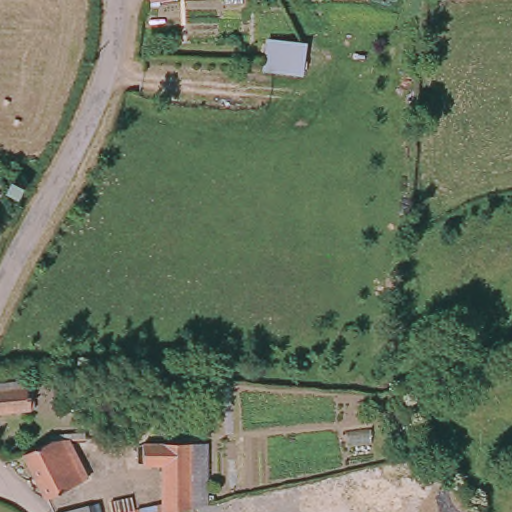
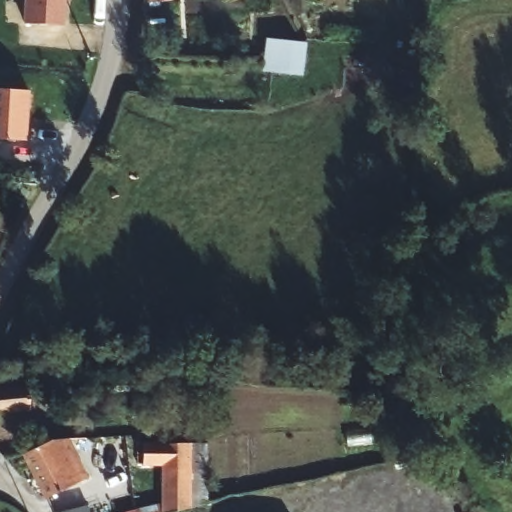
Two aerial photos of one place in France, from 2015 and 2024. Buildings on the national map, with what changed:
new [(24,23),(25,0),(69,0),(65,25),(24,23)]
new [(260,67),(268,35),(309,46),(300,78),(260,67)]
new [(27,139),(0,139),(0,88),(30,90),(27,139)]
unchanged [(0,387),(25,386),(29,416),(0,419),(0,387)]
unchanged [(48,439),(64,438),(85,481),(45,496),(22,451),(48,439)]
unchanged [(200,449),(212,506),(187,512),(146,512),(168,507),(160,464),(140,463),(137,450),(200,449)]
unchanged [(89,502),(99,500),(102,512),(55,512),(89,502)]

